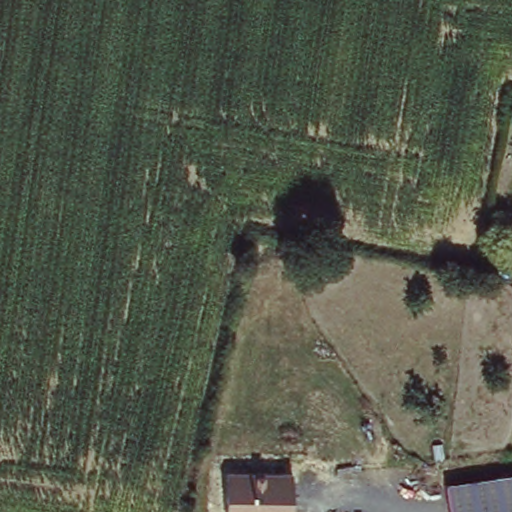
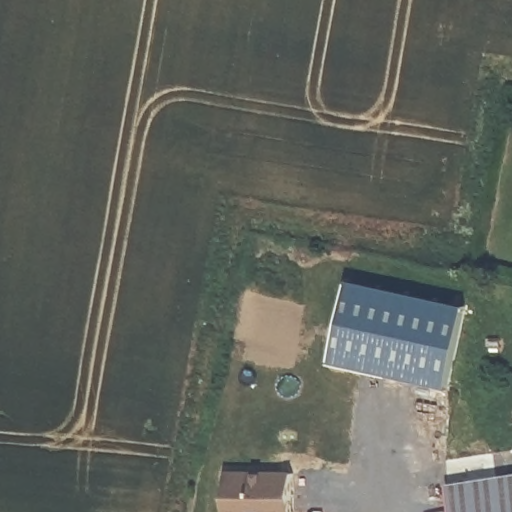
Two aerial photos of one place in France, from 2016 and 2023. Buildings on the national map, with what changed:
new [(469,305),(453,392),(327,364),(346,277),(469,305)]
unchanged [(294,472),(294,512),(227,512),(227,471),(294,472)]
unchanged [(512,474),(512,504),(468,512),(451,512),(448,484),(512,474)]
unchanged [(512,512),(468,512),(512,504),(512,512)]

